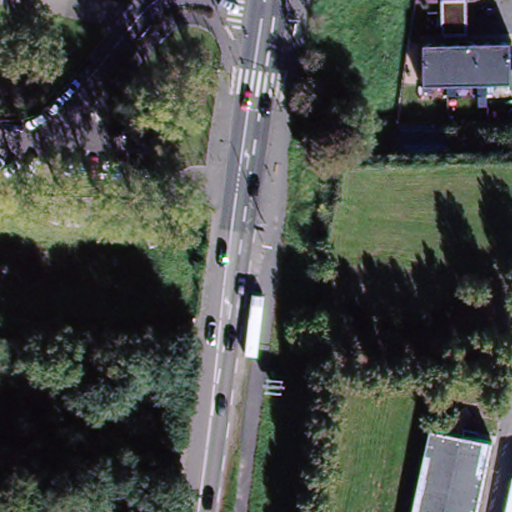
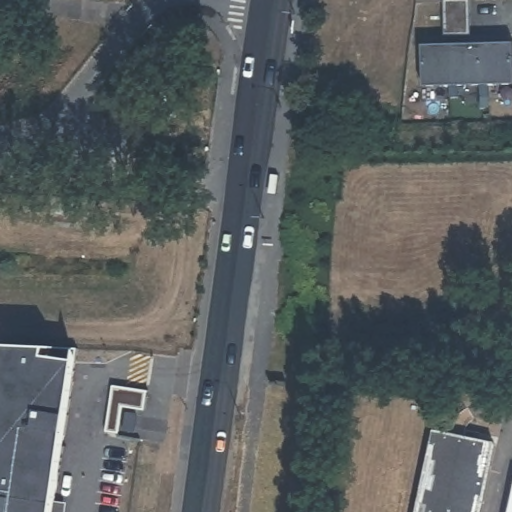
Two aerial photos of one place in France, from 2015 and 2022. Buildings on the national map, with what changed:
unchanged [(468,1),(468,36),(445,36),(443,0),(468,1)]
unchanged [(512,45),(512,84),(422,88),(421,46),(512,45)]
new [(0,346),(44,348),(42,358),(72,362),(64,416),(60,432),(48,512),(0,512),(0,346)]
unchanged [(431,433),(491,446),(477,512),(414,512),(431,433)]
unchanged [(512,509),(512,512),(511,512),(512,509)]

